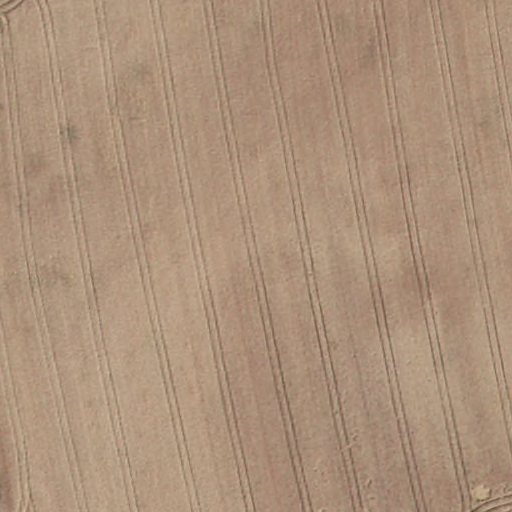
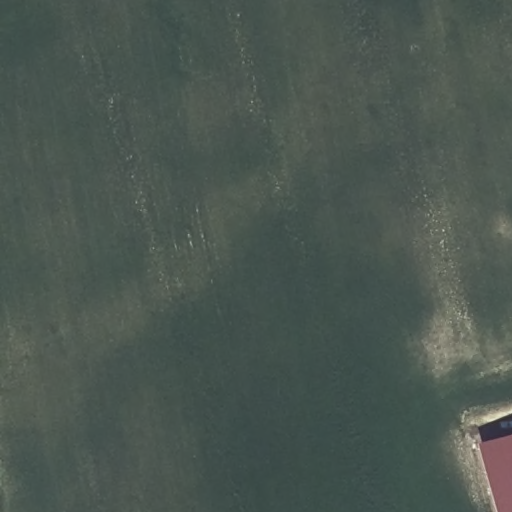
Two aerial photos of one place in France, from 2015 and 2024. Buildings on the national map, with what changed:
new [(482,440),(512,433),(512,512),(503,512),(482,440)]

